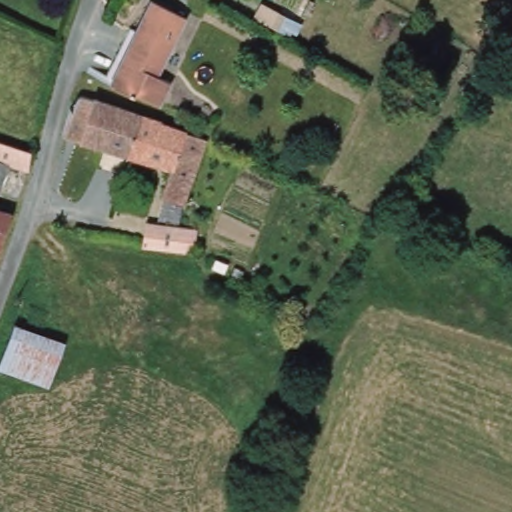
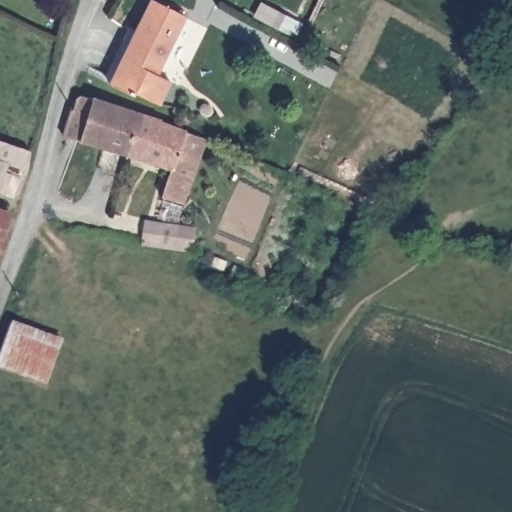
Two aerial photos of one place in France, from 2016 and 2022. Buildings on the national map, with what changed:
unchanged [(136,91),(134,95),(111,83),(120,64),(130,43),(123,41),(132,25),(137,29),(152,0),(153,0),(183,15),(155,71),(168,78),(163,88),(156,102),(136,91)]
unchanged [(162,206),(174,165),(135,155),(72,138),(84,91),(147,109),(165,114),(162,125),(208,138),(183,211),(162,206)]
unchanged [(0,193),(0,140),(31,149),(31,170),(10,163),(0,193)]
unchanged [(0,246),(0,207),(13,211),(0,246)]
unchanged [(142,244),(145,222),(194,230),(193,251),(142,244)]
unchanged [(47,386),(0,369),(0,354),(13,320),(64,341),(47,386)]

